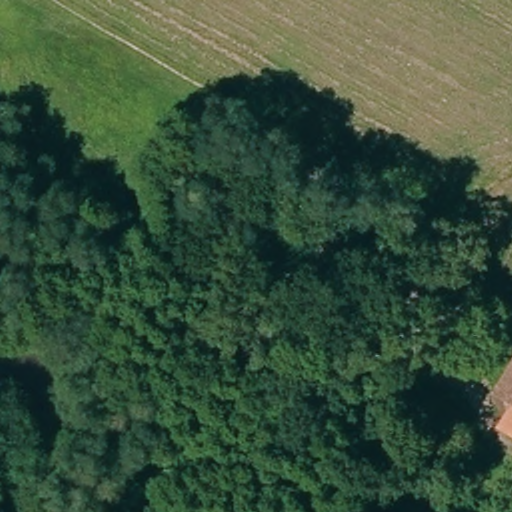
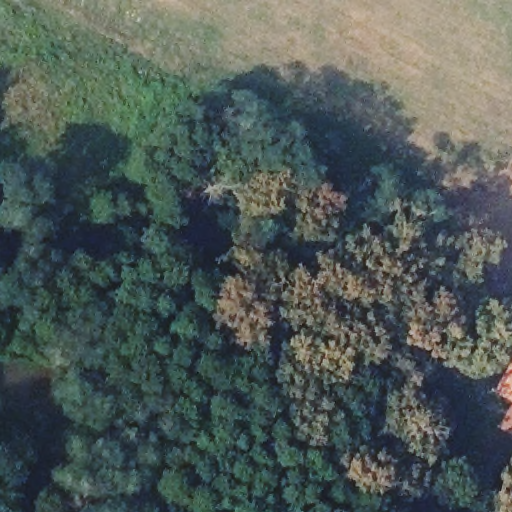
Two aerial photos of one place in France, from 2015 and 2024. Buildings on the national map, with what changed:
unchanged [(497,425),(505,410),(488,400),(512,361),(512,433),(497,425)]

